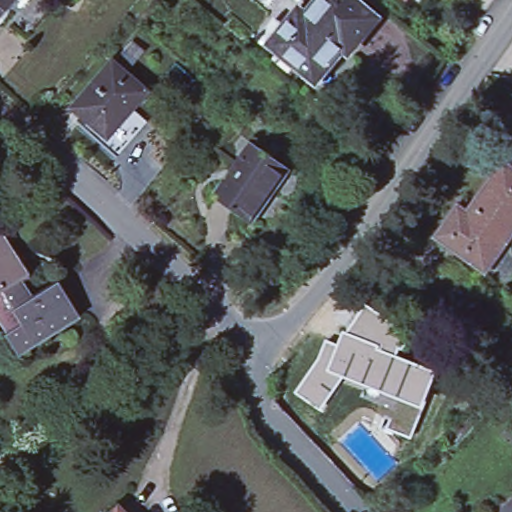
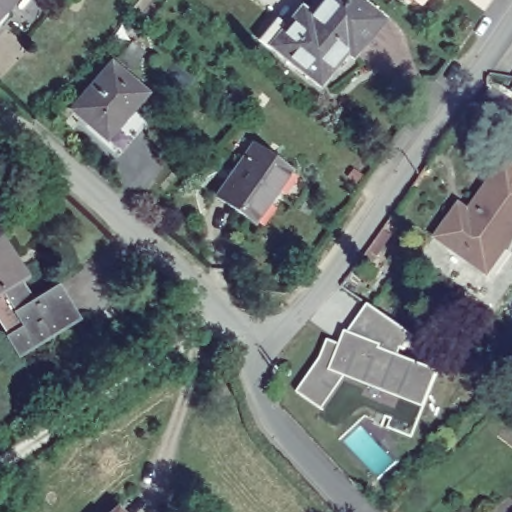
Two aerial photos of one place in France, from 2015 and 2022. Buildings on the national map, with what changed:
unchanged [(0,17),(0,0),(14,0),(0,17)]
unchanged [(285,25),(290,29),(304,12),(312,16),(326,0),(359,0),(382,20),(327,86),(272,41),(285,25)]
unchanged [(410,1),(408,0),(410,0),(410,1)]
unchanged [(133,46),(143,56),(129,73),(118,63),(133,46)]
unchanged [(112,68),(145,99),(106,143),(72,112),(112,68)]
unchanged [(256,146),(291,171),(278,190),(275,189),(252,221),(220,198),(256,146)]
unchanged [(475,211),(511,160),(512,161),(512,243),(492,271),(443,235),(465,204),(475,211)]
unchanged [(5,239),(29,277),(20,283),(0,294),(0,242),(5,239)]
unchanged [(29,298),(55,283),(77,319),(18,355),(6,335),(9,333),(0,318),(0,294),(20,283),(29,298)]
unchanged [(295,393),(318,356),(325,339),(337,343),(342,330),(347,331),(365,304),(413,334),(402,356),(439,370),(421,410),(343,379),(322,411),(295,393)]
unchanged [(127,512),(119,512),(123,508),(127,512)]

